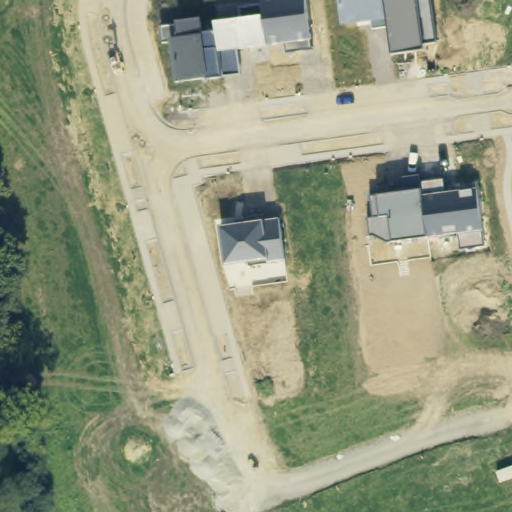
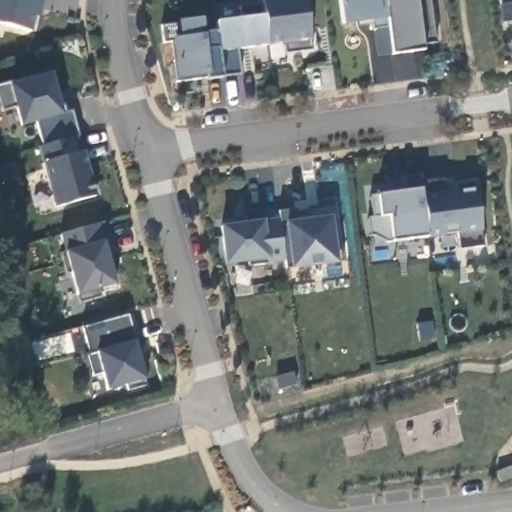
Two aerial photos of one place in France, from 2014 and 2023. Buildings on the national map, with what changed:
new [(36,16),(32,31),(0,24),(0,0),(45,0),(42,17),(36,16)]
unchanged [(164,44),(161,27),(176,24),(202,20),(204,34),(215,32),(213,22),(242,17),(240,9),(261,6),(259,0),(305,0),(312,51),(289,55),(286,43),(238,50),(241,75),(222,77),(179,82),(171,43),(164,44)]
unchanged [(431,0),(437,42),(424,45),(424,50),(391,55),(386,20),(342,25),(338,0),(431,0)]
new [(499,25),(496,7),(502,6),(501,0),(512,0),(512,24),(499,25)]
new [(11,86),(51,72),(58,96),(62,95),(66,114),(73,111),(80,135),(74,136),(79,150),(85,151),(98,195),(56,207),(45,163),(39,147),(45,145),(39,121),(20,126),(16,109),(3,110),(0,100),(0,86),(8,84),(11,86)]
unchanged [(369,236),(367,216),(379,215),(377,195),(403,190),(402,178),(421,175),(422,183),(444,180),(446,191),(477,186),(486,247),(462,251),(459,236),(430,240),(429,237),(394,243),(369,236)]
new [(279,212),(335,204),(343,261),(338,262),(292,270),(292,262),(286,262),(279,216),(279,212)]
unchanged [(220,225),(279,216),(286,262),(268,265),(267,261),(228,268),(220,225)]
new [(104,222),(113,254),(109,257),(116,285),(78,296),(65,251),(68,250),(60,235),(104,222)]
new [(136,340),(136,341),(146,380),(147,386),(129,391),(128,385),(108,390),(103,373),(95,375),(89,355),(91,355),(84,328),(128,315),(136,340)]
new [(512,464),(512,476),(500,480),(497,470),(512,464)]

